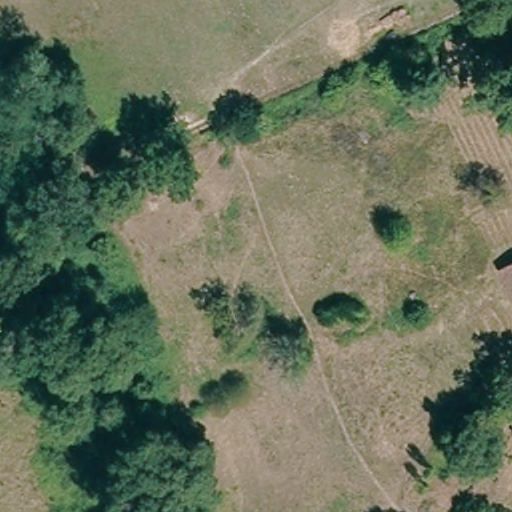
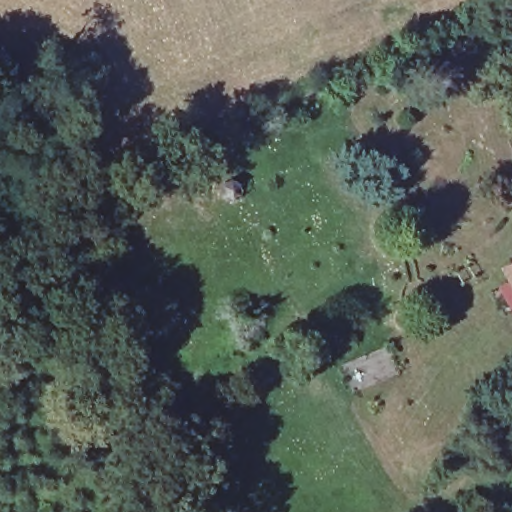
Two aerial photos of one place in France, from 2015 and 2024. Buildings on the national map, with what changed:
unchanged [(503,274),(512,267),(512,289),(503,274)]

